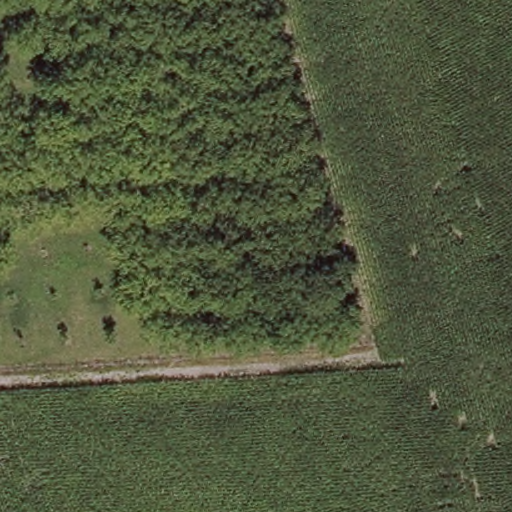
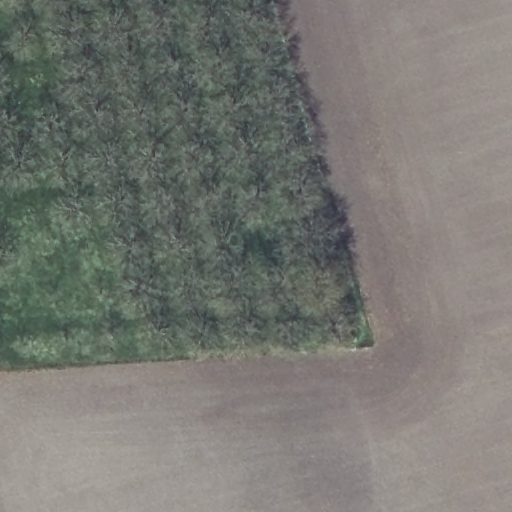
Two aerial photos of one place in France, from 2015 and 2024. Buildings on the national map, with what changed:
[]

